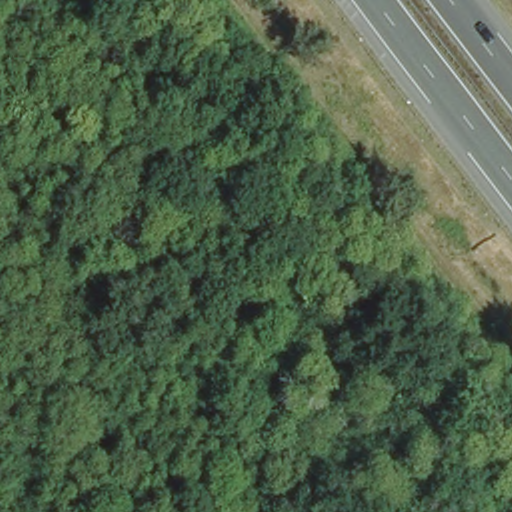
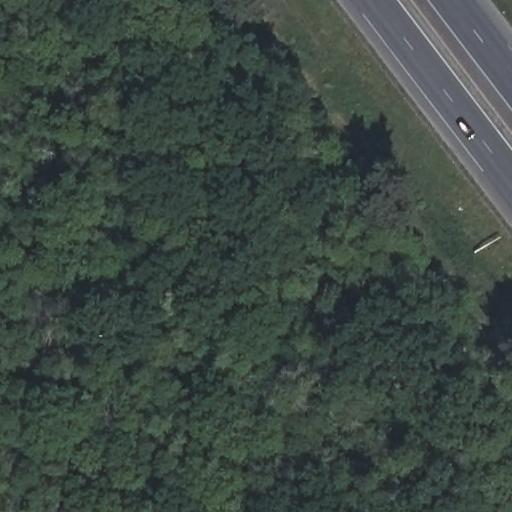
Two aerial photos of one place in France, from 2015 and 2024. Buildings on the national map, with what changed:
[]

